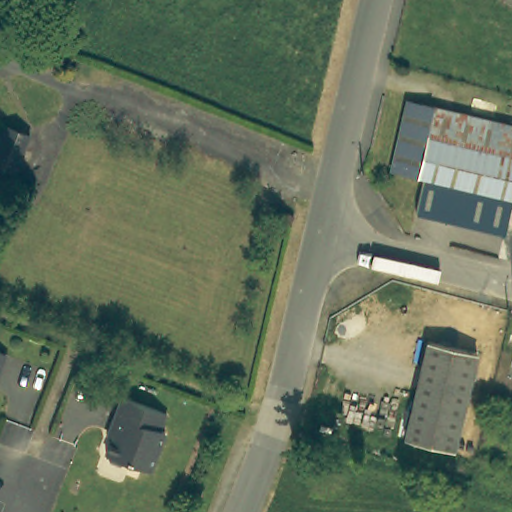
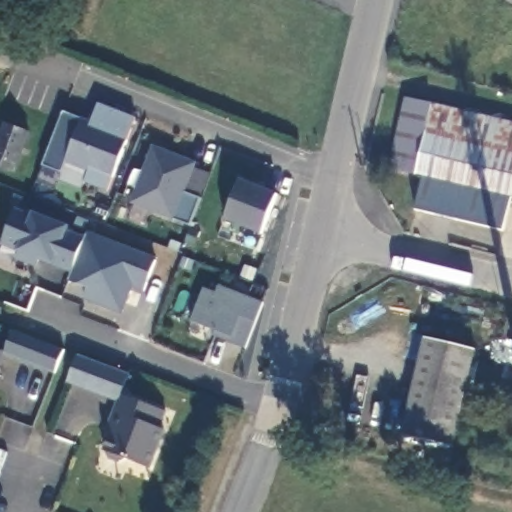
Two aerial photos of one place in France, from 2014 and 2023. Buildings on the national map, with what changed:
unchanged [(507,229),(417,212),(425,176),(392,170),(405,101),(512,123),(512,202),(507,229)]
new [(110,191),(86,182),(90,171),(67,162),(62,173),(43,165),(65,110),(91,122),(99,103),(136,117),(110,191)]
new [(0,167),(0,135),(5,122),(31,133),(15,173),(0,167)]
demolished [(19,148),(10,147),(7,167),(0,166),(0,127),(22,131),(19,148)]
new [(186,192),(201,198),(192,225),(132,203),(153,145),(198,162),(186,192)]
new [(260,234),(224,219),(241,179),(277,195),(260,234)]
new [(55,265),(41,260),(37,267),(17,258),(20,252),(17,251),(2,246),(16,208),(34,214),(70,226),(67,231),(85,237),(72,272),(55,265)]
new [(146,292),(134,287),(123,314),(84,299),(87,289),(68,282),(72,272),(85,237),(90,231),(158,257),(146,292)]
new [(247,349),(215,337),(217,331),(192,321),(205,288),(217,293),(221,285),(263,303),(247,349)]
new [(57,370),(6,351),(13,331),(63,351),(57,370)]
unchanged [(403,439),(424,342),(473,353),(451,450),(403,439)]
unchanged [(0,367),(0,352),(5,354),(0,367)]
new [(121,398),(117,397),(115,402),(66,384),(77,353),(131,373),(121,398)]
unchanged [(160,432),(145,469),(121,461),(115,464),(104,460),(100,450),(107,431),(104,430),(117,397),(162,413),(155,430),(160,432)]

